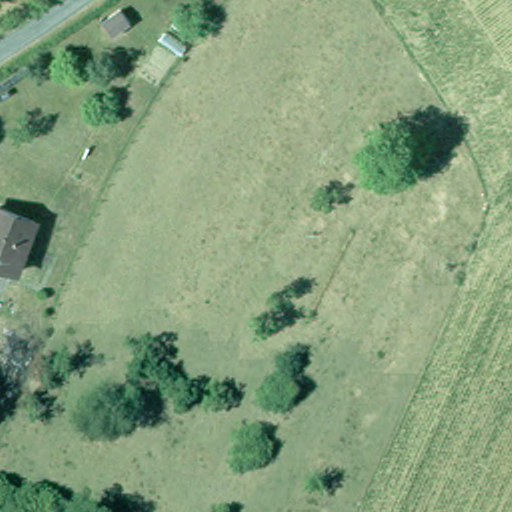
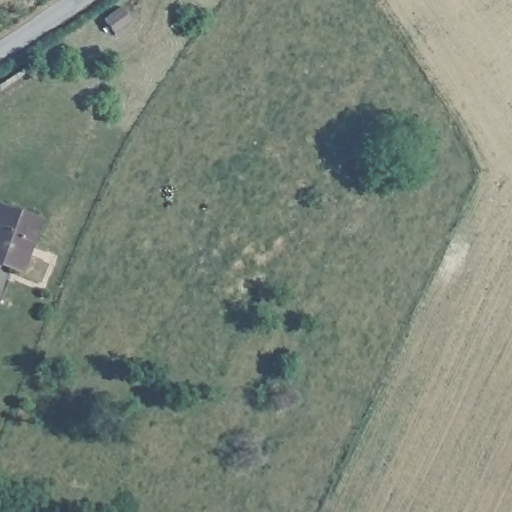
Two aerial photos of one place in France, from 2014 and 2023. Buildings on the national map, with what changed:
unchanged [(86,50),(69,63),(57,46),(75,34),(86,50)]
unchanged [(0,201),(14,208),(36,219),(15,266),(0,259),(0,201)]

